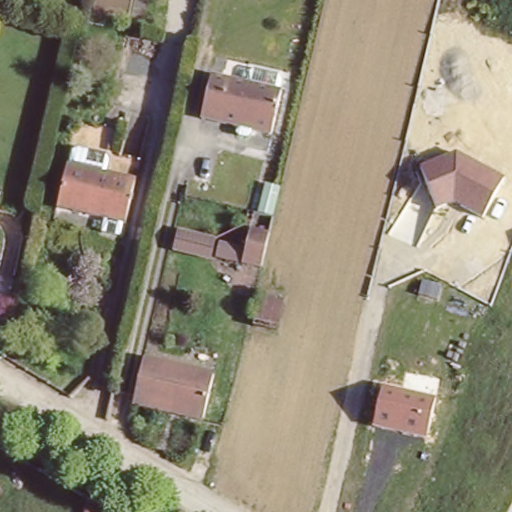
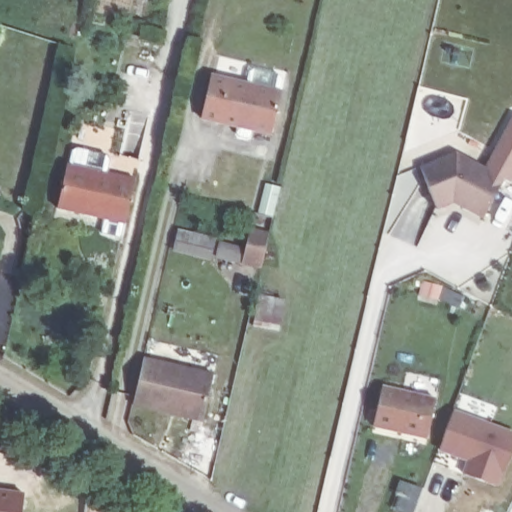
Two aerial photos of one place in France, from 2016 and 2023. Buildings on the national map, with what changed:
unchanged [(285,89),(275,133),(205,117),(215,74),(285,89)]
new [(512,123),(512,182),(505,178),(489,169),(512,123)]
unchanged [(419,168),(455,152),(505,178),(482,218),(454,204),(435,210),(419,168)]
unchanged [(133,179),(124,225),(56,210),(65,165),(133,179)]
unchanged [(262,265),(242,260),(250,226),(269,231),(262,265)]
unchanged [(217,240),(216,245),(244,251),(242,260),(240,265),(211,259),(209,262),(172,252),(177,231),(217,240)]
unchanged [(287,299),(281,329),(254,323),(260,293),(287,299)]
unchanged [(214,374),(204,420),(133,405),(143,358),(214,374)]
unchanged [(382,388),(435,399),(427,439),(372,428),(382,388)]
new [(512,452),(500,487),(462,474),(467,462),(440,452),(455,411),(512,432),(512,452)]

